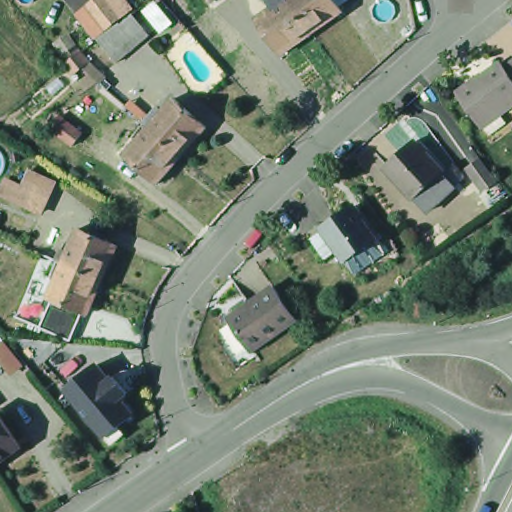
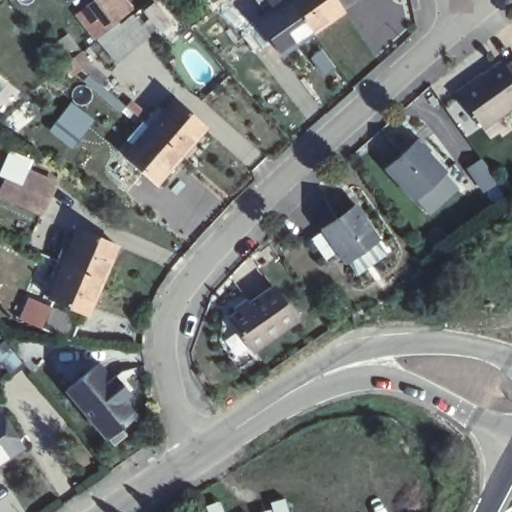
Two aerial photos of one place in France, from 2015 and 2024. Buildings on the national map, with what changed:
unchanged [(95,0),(123,0),(130,9),(120,18),(106,29),(95,38),(76,16),(87,7),(95,0)]
unchanged [(211,4),(209,0),(217,0),(211,4)]
unchanged [(297,14),(312,34),(281,56),(255,22),(277,6),(273,1),(274,0),(287,0),(297,14)]
unchanged [(343,12),(312,34),(297,14),(287,0),(335,0),(343,12)]
unchanged [(136,13),(154,33),(141,44),(140,42),(120,60),(100,37),(110,29),(120,21),(123,24),(136,13)]
unchanged [(62,68),(71,60),(80,54),(88,65),(81,71),(71,79),(62,68)]
unchanged [(479,128),(456,96),(498,66),(501,70),(512,62),(512,104),(479,128)]
unchanged [(151,116),(156,120),(173,100),(206,129),(180,157),(161,140),(144,124),(151,116)]
unchanged [(70,148),(48,131),(58,118),(80,135),(70,148)]
unchanged [(161,140),(180,157),(155,185),(122,157),(140,137),(136,133),(144,124),(161,140)]
unchanged [(411,202),(386,169),(417,145),(443,178),(411,202)]
unchanged [(467,166),(480,157),(496,180),(482,189),(467,166)]
unchanged [(14,199),(20,184),(27,169),(53,180),(46,196),(40,211),(14,199)]
unchanged [(355,272),(346,259),(323,227),(353,206),(376,238),(385,250),(355,272)]
unchanged [(65,248),(71,250),(81,226),(122,242),(107,277),(86,268),(61,258),(65,248)]
unchanged [(86,268),(107,277),(92,312),(52,296),(62,271),(56,268),(61,258),(86,268)]
unchanged [(248,358),(223,324),(268,291),(292,326),(248,358)]
unchanged [(46,310),(78,323),(69,345),(38,332),(46,310)]
unchanged [(0,356),(0,346),(7,341),(25,363),(13,372),(0,356)]
unchanged [(100,364),(112,381),(117,378),(130,394),(122,400),(135,416),(106,438),(68,389),(100,364)]
unchanged [(0,457),(0,412),(21,442),(0,457)]

